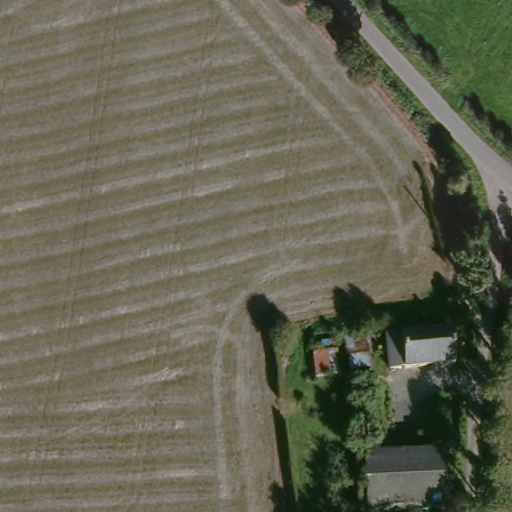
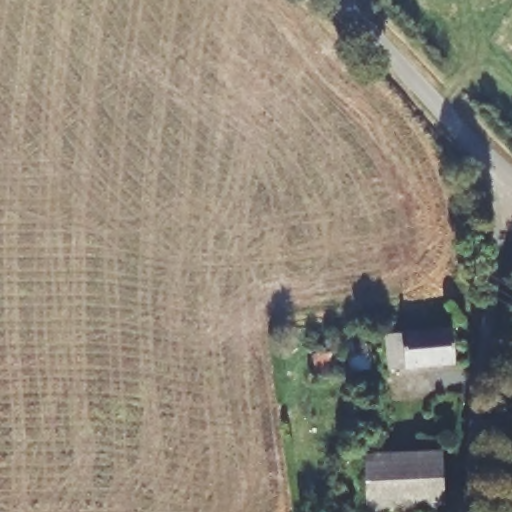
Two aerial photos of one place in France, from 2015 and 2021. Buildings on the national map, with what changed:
unchanged [(462,327),(465,364),(399,371),(395,335),(462,327)]
unchanged [(379,375),(309,380),(309,365),(317,360),(318,350),(346,350),(342,334),(369,337),(379,375)]
unchanged [(444,455),(446,496),(369,501),(367,460),(444,455)]

